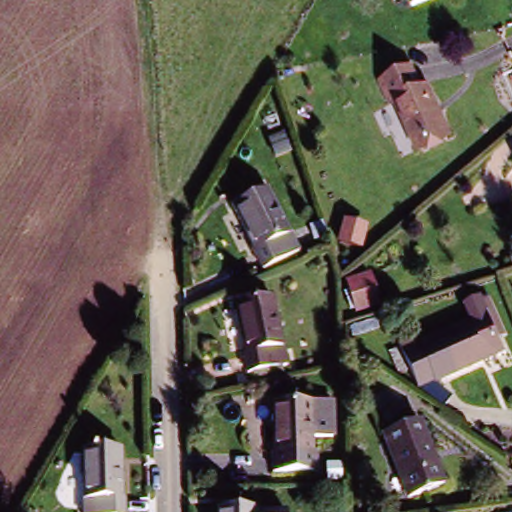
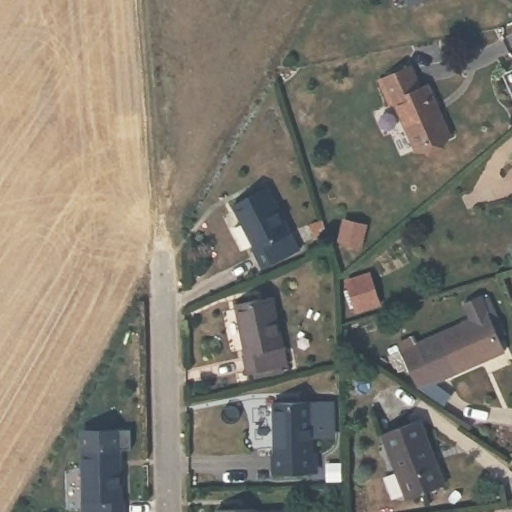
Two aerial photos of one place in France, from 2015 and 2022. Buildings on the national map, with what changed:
unchanged [(408,0),(417,0),(410,4),(408,0)]
unchanged [(427,93),(432,91),(452,138),(417,154),(397,109),(393,111),(383,88),(417,72),(427,93)]
unchanged [(253,257),(257,255),(232,207),(265,190),(287,234),(290,232),(300,253),(262,273),(253,257)]
unchanged [(350,282),(375,278),(383,310),(359,316),(350,282)]
unchanged [(243,366),(238,345),(242,345),(233,297),(270,287),(279,335),(282,335),(287,354),(243,366)]
unchanged [(413,343),(417,351),(470,328),(464,312),(481,306),(483,310),(488,307),(503,340),(497,342),(504,358),(433,387),(432,385),(416,392),(398,351),(413,343)]
unchanged [(272,477),(271,457),(275,457),(273,408),(308,407),(309,456),(313,456),(313,475),(272,477)]
unchanged [(402,501),(385,436),(420,425),(439,488),(402,501)]
unchanged [(83,501),(86,501),(85,456),(120,455),(122,501),(125,500),(125,512),(83,512),(83,501)]
unchanged [(255,510),(255,512),(230,512),(255,510)]

